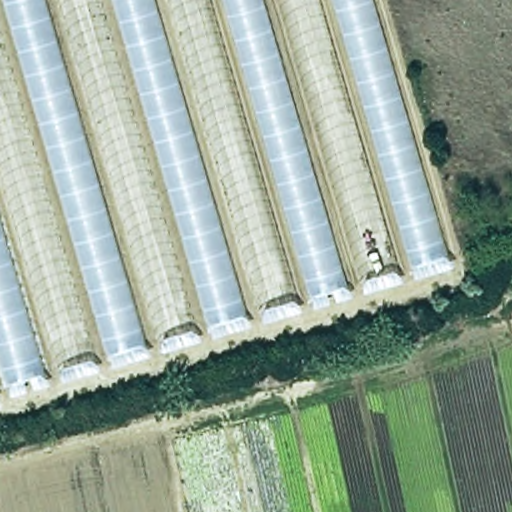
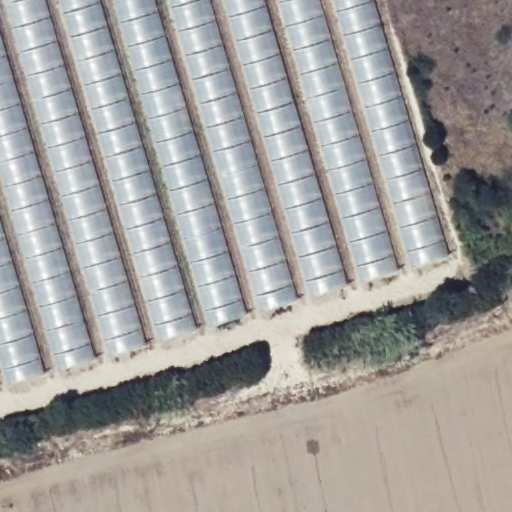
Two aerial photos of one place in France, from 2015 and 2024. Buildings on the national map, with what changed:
unchanged [(0,0),(372,0),(449,265),(0,399),(0,0)]

